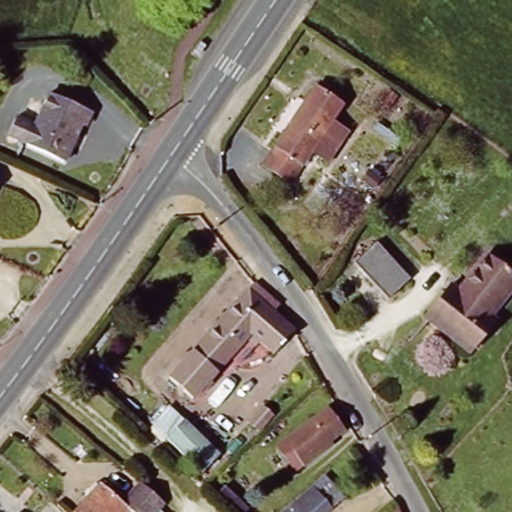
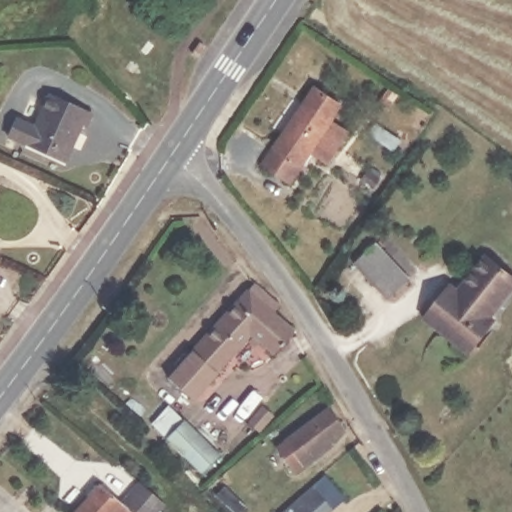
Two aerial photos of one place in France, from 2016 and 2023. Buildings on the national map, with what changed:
unchanged [(320,132),(318,131),(291,177),(263,161),(309,85),(338,101),(320,132)]
unchanged [(97,114),(91,129),(81,125),(65,162),(5,136),(13,118),(33,126),(48,92),(97,114)]
unchanged [(392,295),(355,265),(372,243),(410,274),(392,295)]
unchanged [(445,283),(452,288),(475,250),(510,270),(485,309),(490,312),(470,345),(423,317),(445,283)]
unchanged [(272,351),(246,330),(187,393),(165,373),(242,286),(245,289),(257,276),(280,295),(269,309),(290,327),(272,351)]
unchanged [(284,435),(327,403),(346,432),(302,465),(284,435)]
unchanged [(219,450),(198,472),(150,427),(167,404),(219,450)]
unchanged [(254,431),(243,423),(257,406),(268,414),(254,431)]
unchanged [(343,493),(325,512),(283,512),(295,500),(320,473),(323,475),(343,493)]
unchanged [(70,508),(92,482),(115,504),(130,486),(134,480),(153,497),(148,502),(140,512),(74,512),(70,508)]

